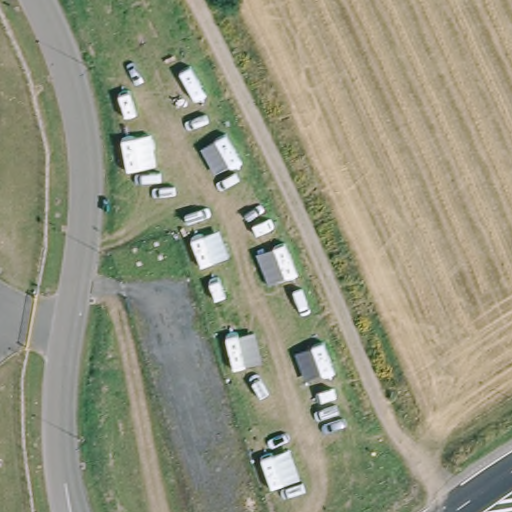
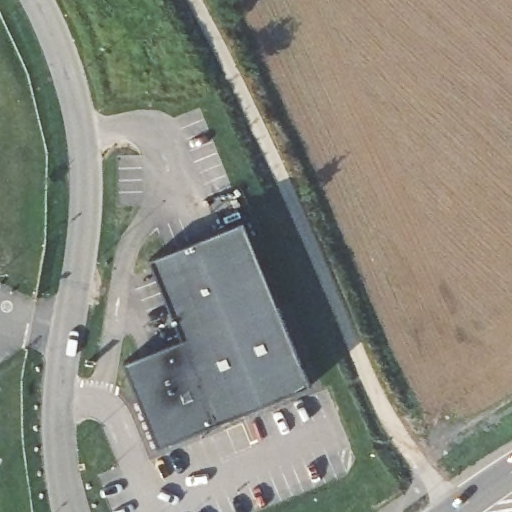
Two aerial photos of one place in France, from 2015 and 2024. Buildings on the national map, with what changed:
new [(126,362),(184,339),(153,259),(245,221),(311,383),(161,446),(126,362)]

